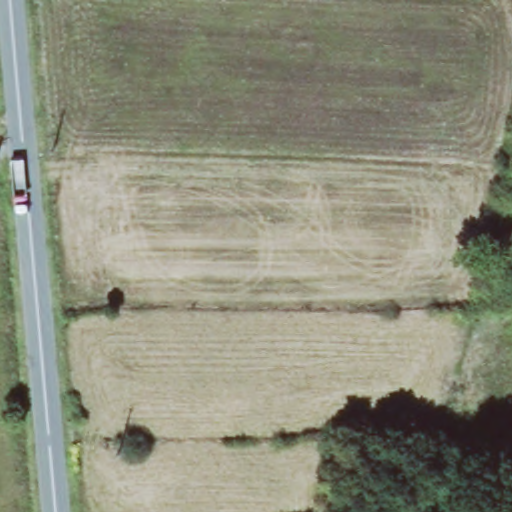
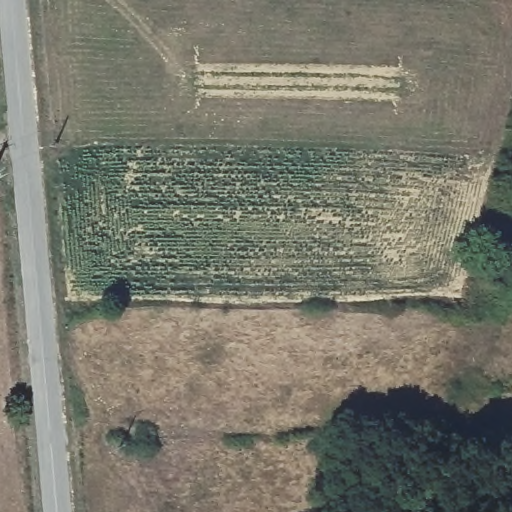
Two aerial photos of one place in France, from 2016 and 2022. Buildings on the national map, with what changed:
[]

